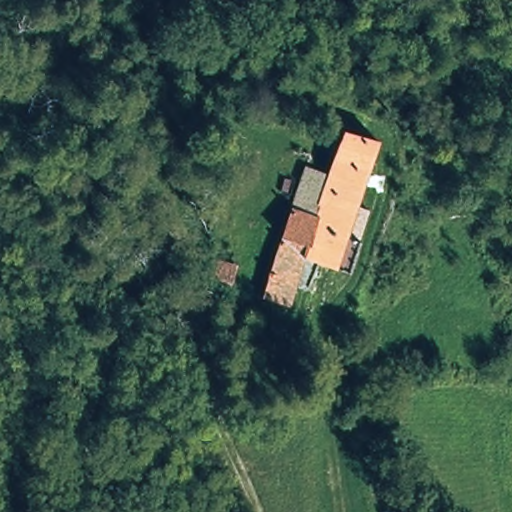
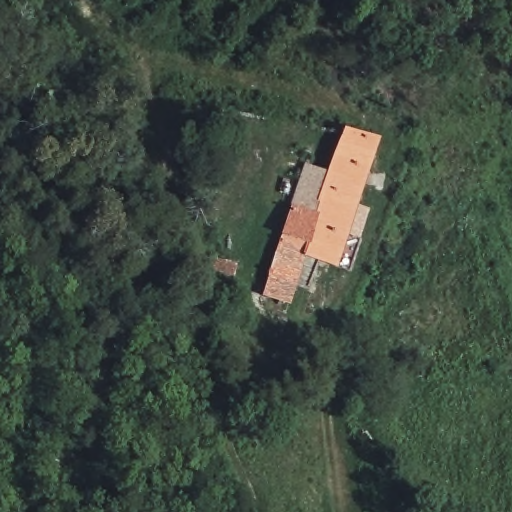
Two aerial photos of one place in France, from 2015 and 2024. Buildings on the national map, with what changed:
unchanged [(342,270),(307,259),(295,307),(260,301),(287,205),(314,216),(344,125),(384,139),(342,270)]

